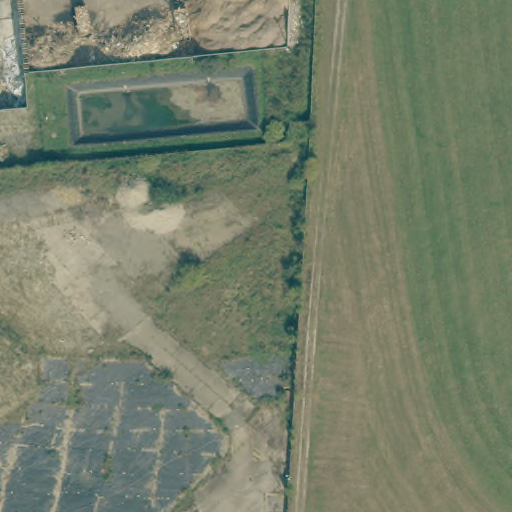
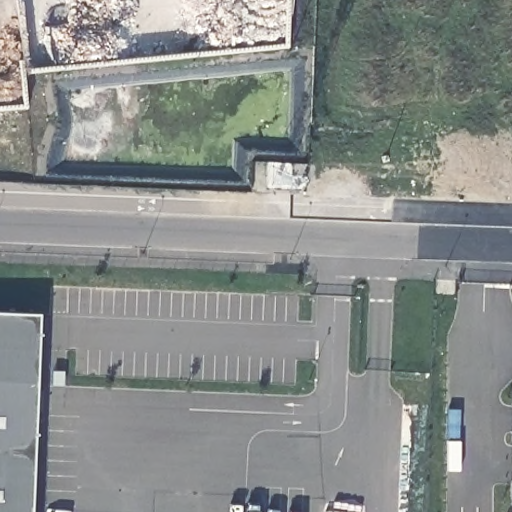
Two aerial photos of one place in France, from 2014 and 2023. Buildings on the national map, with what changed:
new [(39,314),(31,512),(0,512),(0,313),(39,314)]

